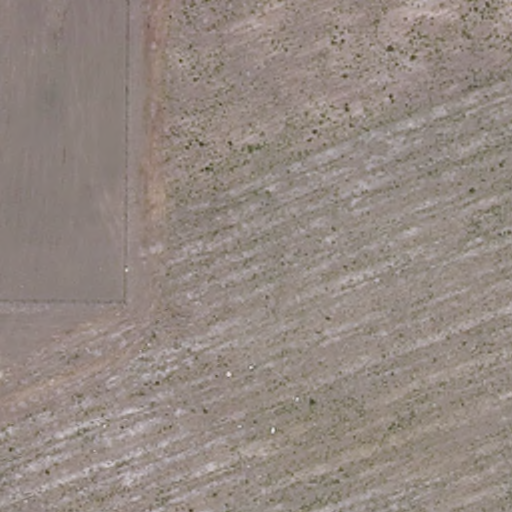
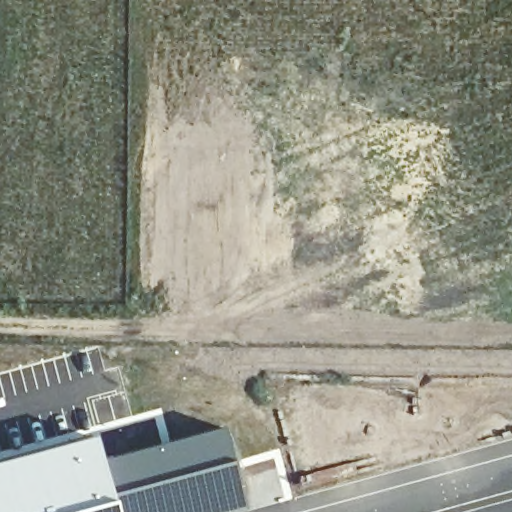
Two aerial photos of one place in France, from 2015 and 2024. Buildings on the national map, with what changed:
new [(160,408),(169,439),(225,427),(243,508),(229,512),(0,512),(0,457),(72,438),(160,408)]

